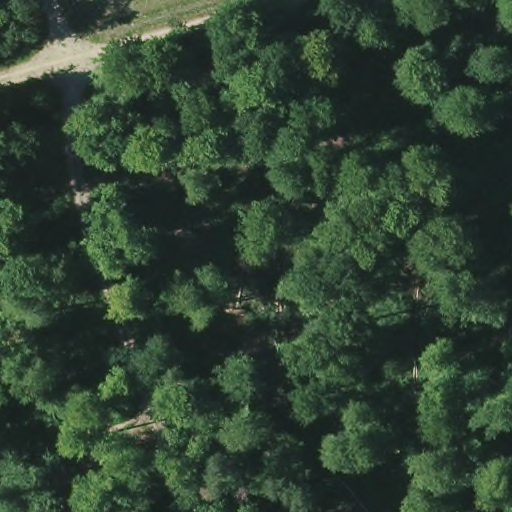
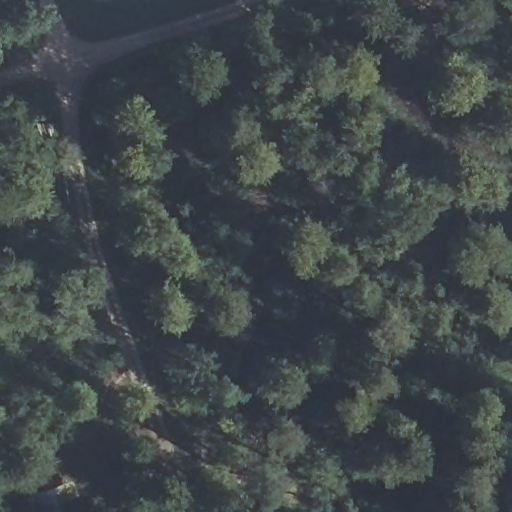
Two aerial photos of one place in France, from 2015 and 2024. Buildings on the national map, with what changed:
unchanged [(52,512),(33,512),(26,491),(48,482),(59,511),(52,512)]

